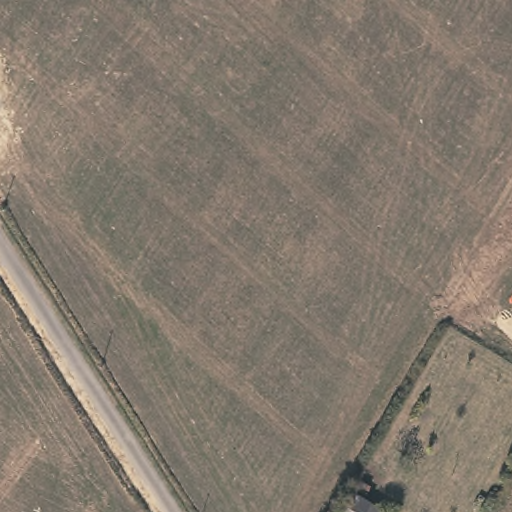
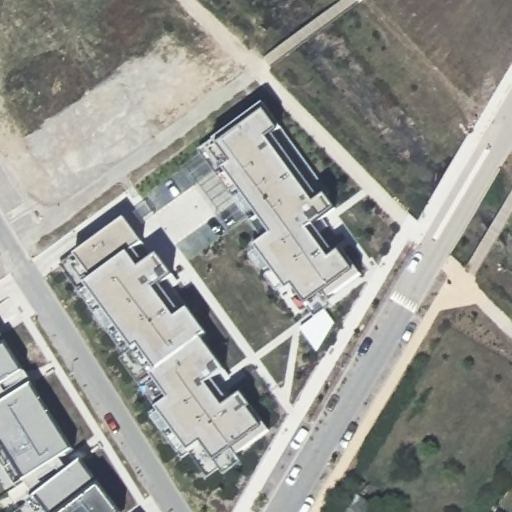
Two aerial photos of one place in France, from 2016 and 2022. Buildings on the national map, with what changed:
new [(270,135),(317,201),(325,194),(334,207),(307,227),(330,259),(340,251),(355,271),(322,293),(333,305),(319,315),(307,303),(295,286),(288,291),(257,247),(266,239),(200,150),(214,138),(258,107),(260,114),(264,111),(278,128),(270,135)]
new [(262,424),(271,432),(237,454),(242,461),(225,473),(214,461),(201,443),(187,452),(157,407),(167,399),(151,376),(157,371),(139,345),(132,349),(85,284),(91,279),(75,253),(124,218),(141,243),(128,250),(141,266),(158,254),(172,273),(155,286),(176,316),(190,307),(207,332),(201,337),(224,369),(206,382),(223,406),(242,393),(262,424)]
new [(91,279),(85,284),(132,349),(139,345),(157,371),(151,376),(167,399),(157,407),(187,452),(201,443),(214,461),(201,470),(191,456),(184,461),(147,409),(156,403),(124,357),(127,354),(60,263),(75,253),(91,279)]
new [(33,498),(20,483),(16,485),(0,461),(0,337),(6,347),(22,373),(19,375),(26,386),(32,383),(72,449),(53,462),(62,473),(81,459),(99,486),(118,512),(37,512),(29,501),(33,498)]
unchanged [(362,499),(382,512),(340,512),(358,483),(368,489),(362,499)]

